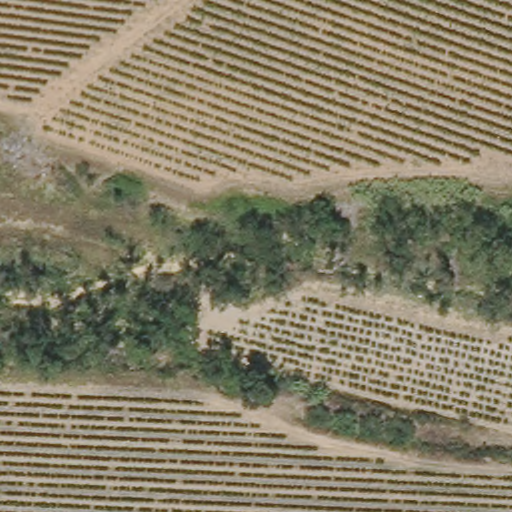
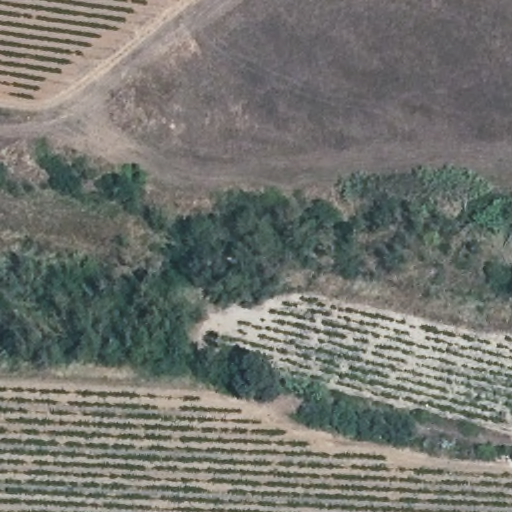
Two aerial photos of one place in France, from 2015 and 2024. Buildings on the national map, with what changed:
[]

